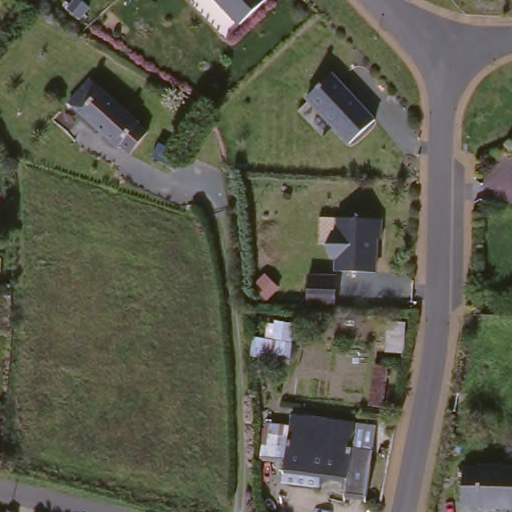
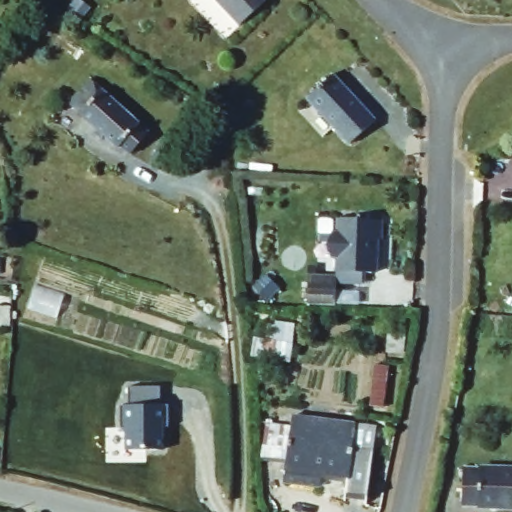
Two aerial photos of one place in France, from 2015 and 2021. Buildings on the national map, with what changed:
unchanged [(224,0),(270,0),(245,23),(224,0)]
unchanged [(333,66),(376,111),(351,136),(308,91),(333,66)]
unchanged [(146,125),(131,145),(126,151),(113,139),(109,142),(64,99),(91,69),(95,73),(94,77),(146,125)]
unchanged [(66,115),(56,126),(46,116),(58,105),(66,115)]
unchanged [(389,215),(388,235),(383,235),(381,269),(343,267),(344,252),(339,252),(334,239),(341,229),(344,229),(346,214),(389,215)]
unchanged [(343,272),(341,300),(314,299),(315,271),(343,272)]
unchanged [(284,337),(284,357),(254,354),(253,332),(284,337)]
unchanged [(390,364),(386,408),(366,406),(369,363),(390,364)]
new [(126,430),(119,431),(119,404),(126,404),(127,386),(160,386),(160,404),(169,404),(169,427),(164,428),(164,450),(126,450),(126,430)]
unchanged [(354,427),(352,449),(376,451),(368,498),(348,496),(346,483),(288,476),(291,459),(268,454),(275,422),(296,424),(297,417),(354,427)]
unchanged [(512,504),(466,502),(469,462),(512,464),(512,504)]

